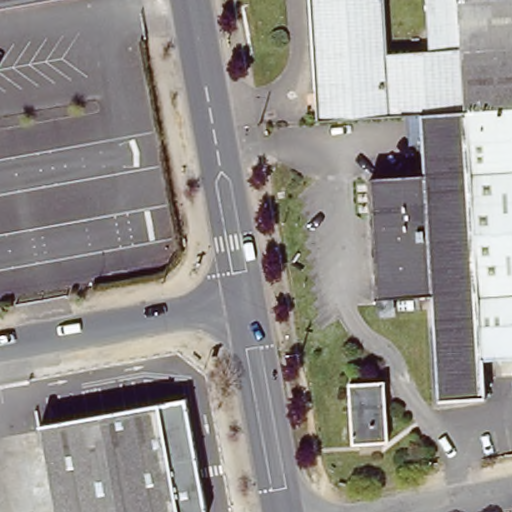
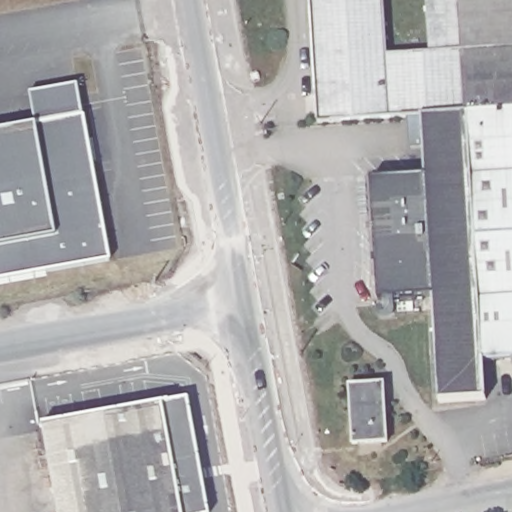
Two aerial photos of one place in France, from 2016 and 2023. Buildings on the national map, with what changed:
demolished [(64,0),(0,12),(0,0),(64,0)]
unchanged [(487,396),(442,398),(437,293),(382,297),(373,177),(425,175),(423,113),(320,121),(312,0),(385,0),(387,50),(431,50),(428,0),(512,0),(512,360),(485,362),(487,396)]
new [(33,125),(28,93),(77,84),(109,260),(0,280),(0,131),(33,125)]
unchanged [(353,448),(347,400),(347,387),(353,387),(367,385),(382,384),(384,404),(387,425),(388,445),(353,448)]
unchanged [(39,429),(183,402),(203,512),(53,512),(39,429)]

